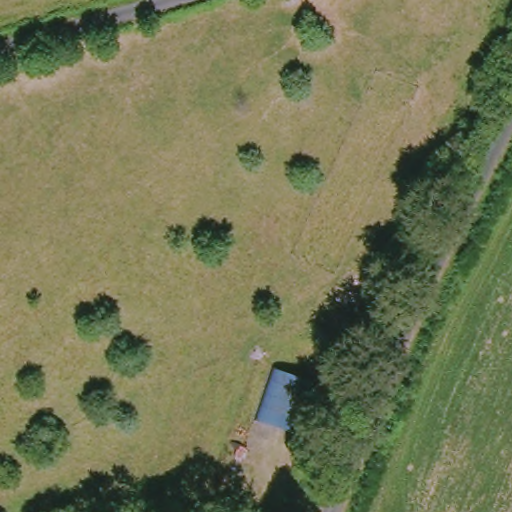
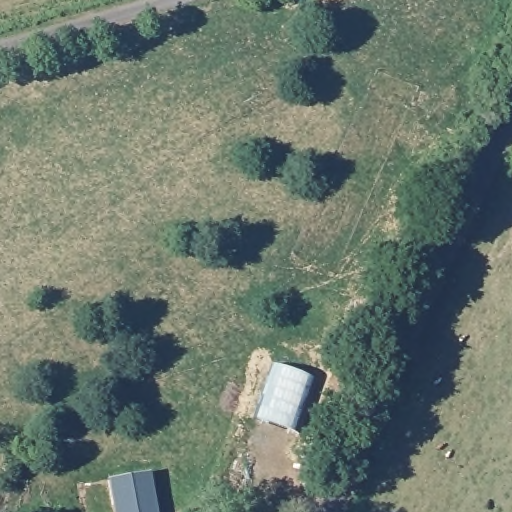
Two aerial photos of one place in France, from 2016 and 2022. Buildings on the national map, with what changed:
unchanged [(277,367),(313,380),(297,431),(260,419),(277,367)]
new [(152,473),(158,512),(114,512),(108,481),(152,473)]

